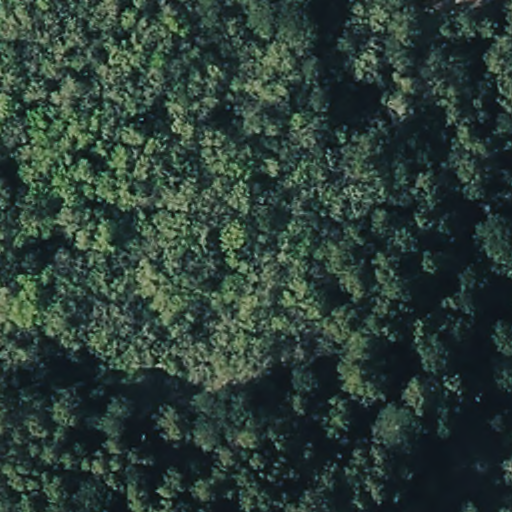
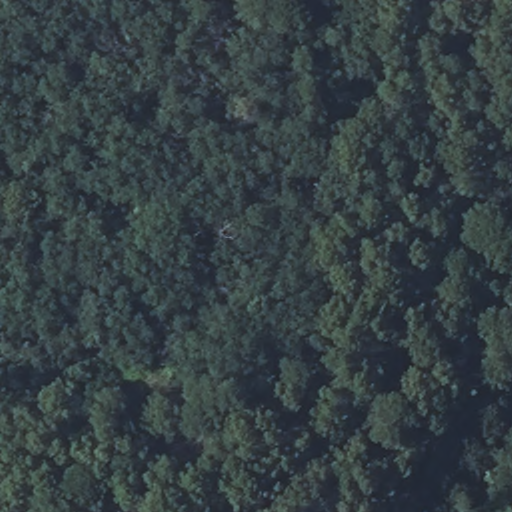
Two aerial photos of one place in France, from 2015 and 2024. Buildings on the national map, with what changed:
unchanged [(172,479),(149,479),(150,452),(173,453),(172,479)]

